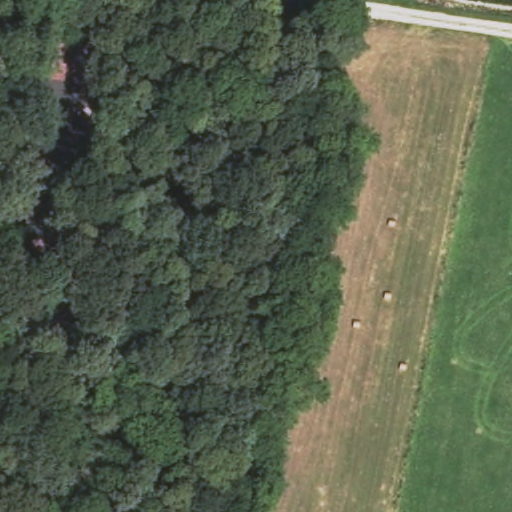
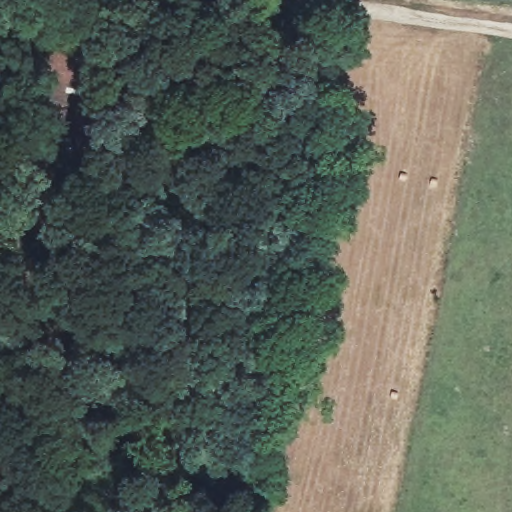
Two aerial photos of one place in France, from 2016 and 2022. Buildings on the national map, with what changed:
unchanged [(74,155),(27,151),(35,40),(80,49),(74,155)]

